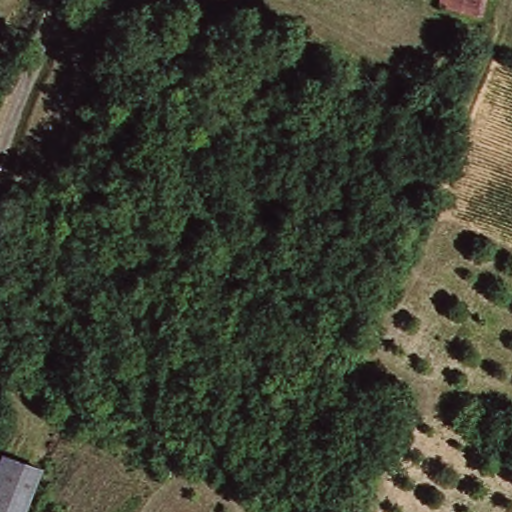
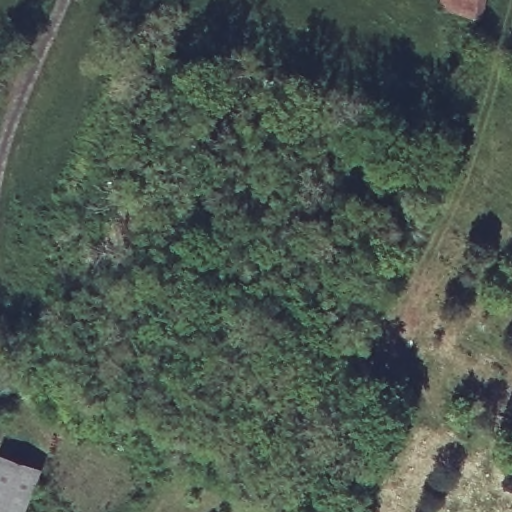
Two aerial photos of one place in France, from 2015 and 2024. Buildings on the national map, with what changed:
unchanged [(442,5),(443,0),(491,0),(489,12),(442,5)]
unchanged [(28,512),(0,512),(0,458),(3,450),(45,467),(28,512)]

